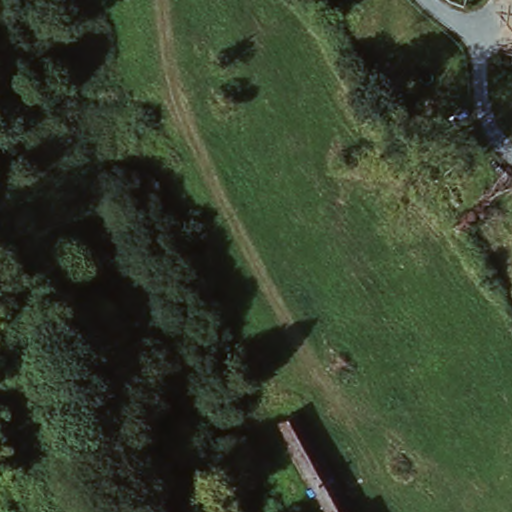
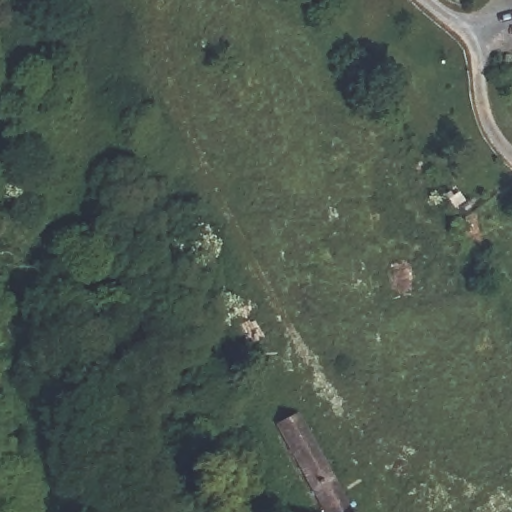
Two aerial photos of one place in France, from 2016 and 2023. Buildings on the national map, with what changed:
unchanged [(205,392),(214,412),(199,418),(190,400),(205,392)]
unchanged [(304,422),(347,512),(322,512),(283,432),(304,422)]

